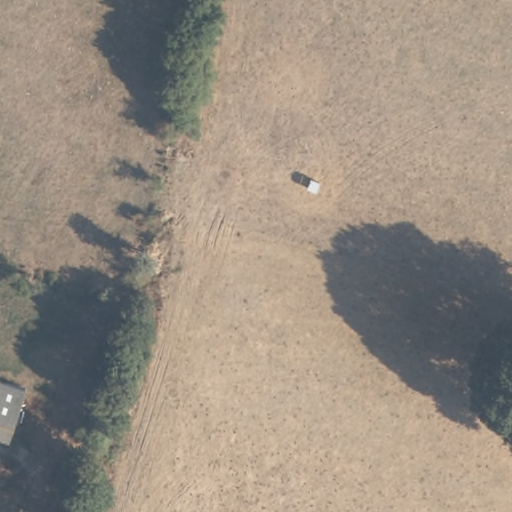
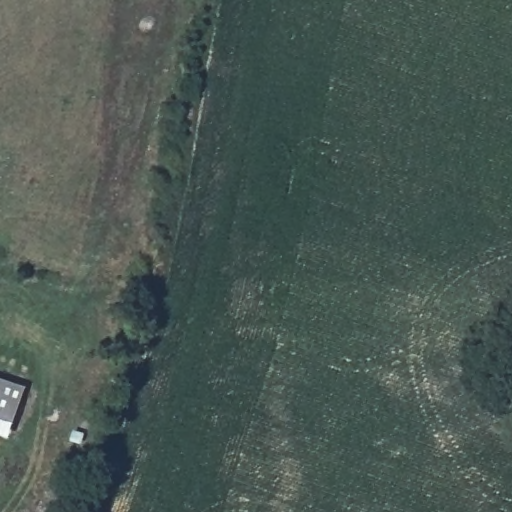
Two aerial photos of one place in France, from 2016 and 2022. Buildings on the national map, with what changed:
unchanged [(10,437),(0,434),(0,374),(26,382),(10,437)]

